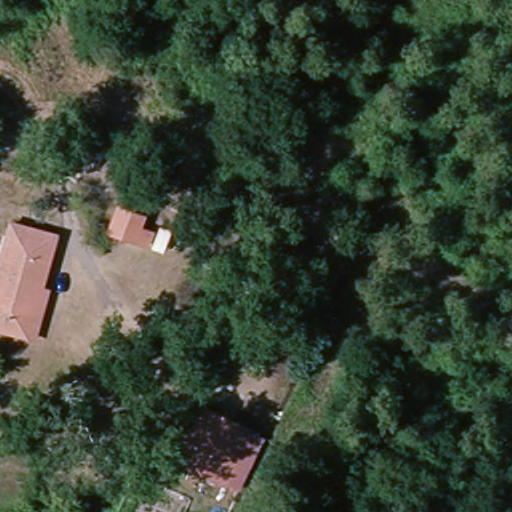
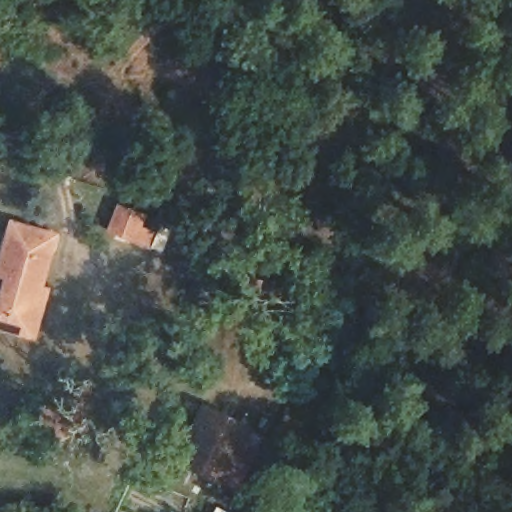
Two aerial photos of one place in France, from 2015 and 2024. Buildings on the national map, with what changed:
unchanged [(132,215),(130,226),(145,230),(142,245),(102,235),(107,210),(132,215)]
unchanged [(52,231),(38,284),(29,321),(0,313),(0,251),(8,219),(52,231)]
unchanged [(263,281),(256,313),(240,310),(247,277),(263,281)]
unchanged [(38,284),(48,288),(34,334),(0,325),(0,313),(29,321),(38,284)]
unchanged [(183,470),(212,413),(255,437),(224,492),(183,470)]

